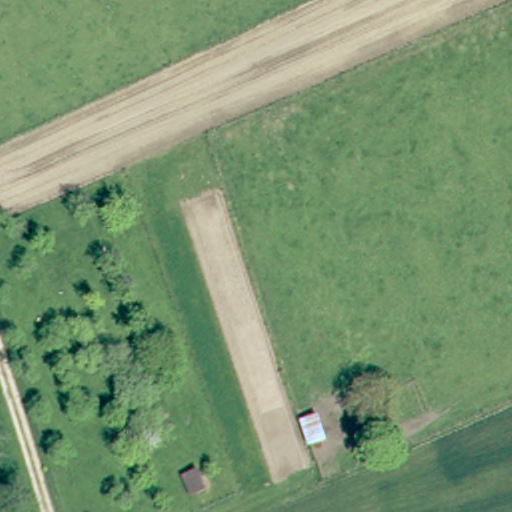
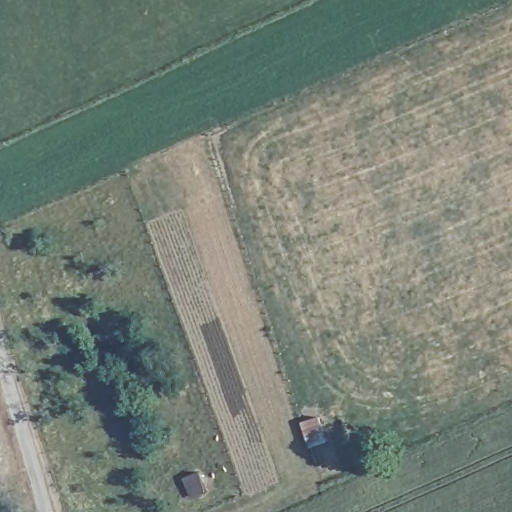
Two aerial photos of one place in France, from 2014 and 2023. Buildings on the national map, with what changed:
unchanged [(325,442),(305,445),(301,423),(320,419),(325,442)]

